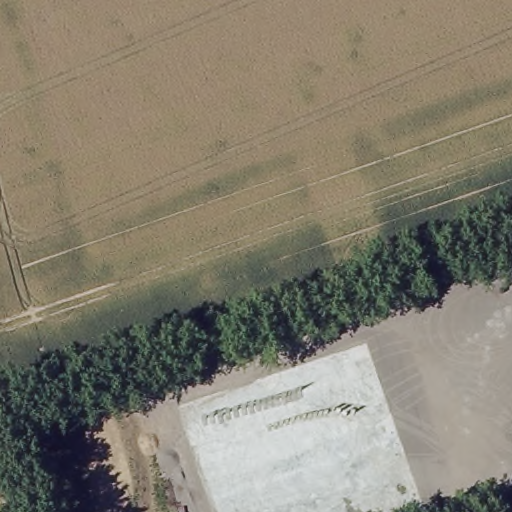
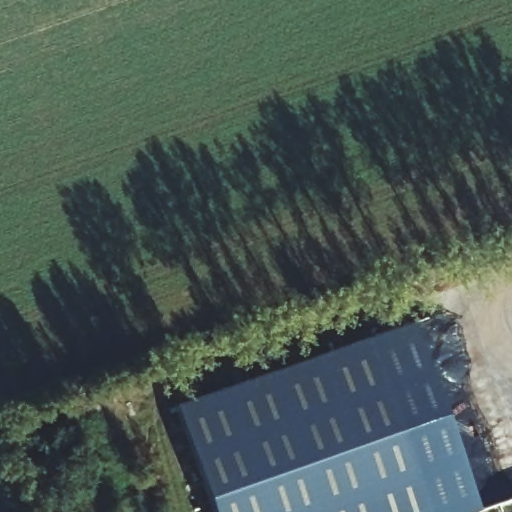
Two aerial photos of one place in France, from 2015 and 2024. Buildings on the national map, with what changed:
new [(413,325),(482,512),(433,512),(371,338),(413,325)]
new [(433,512),(215,512),(177,405),(371,338),(433,512)]

